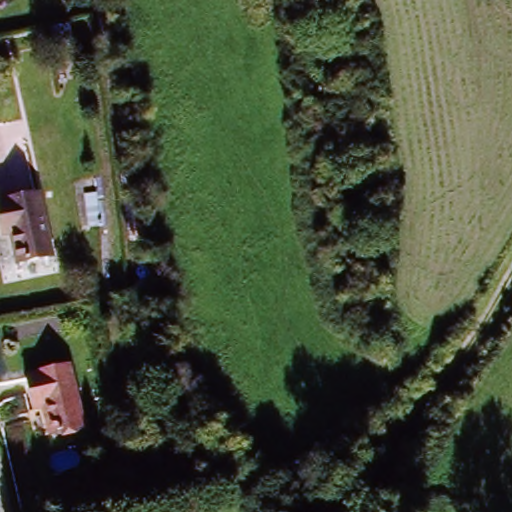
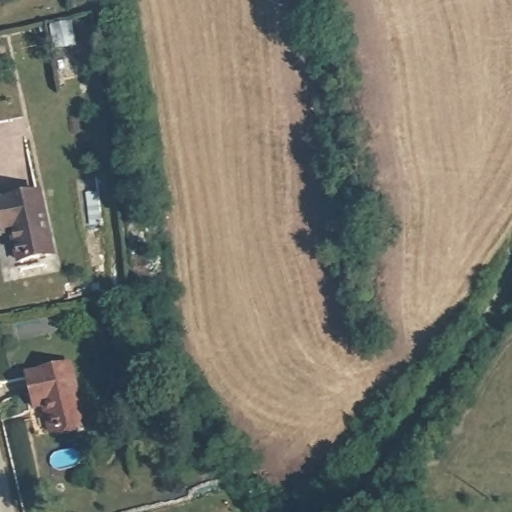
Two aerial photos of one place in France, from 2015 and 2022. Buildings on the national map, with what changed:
unchanged [(58,257),(25,264),(18,233),(7,234),(2,201),(45,193),(58,257)]
unchanged [(39,408),(30,371),(76,363),(89,420),(52,427),(48,408),(39,408)]

